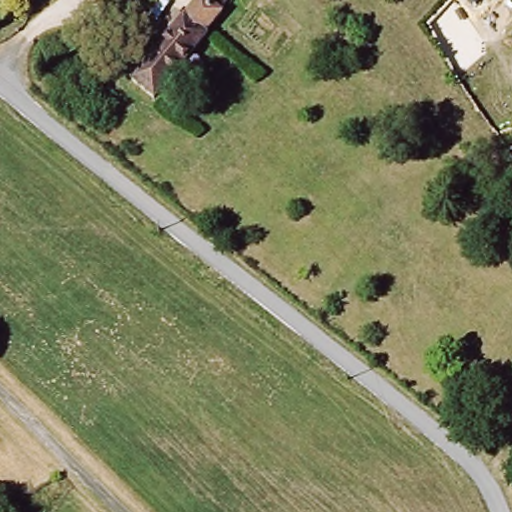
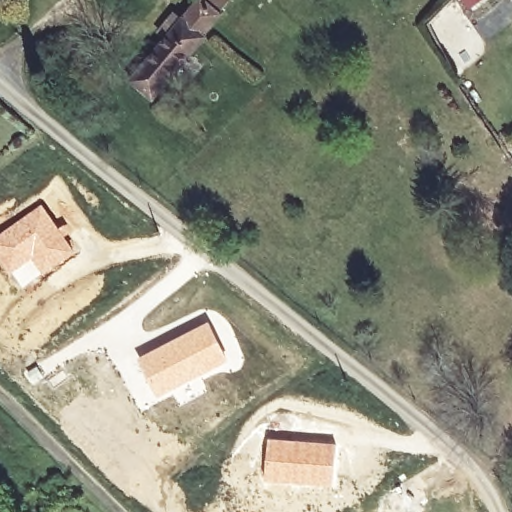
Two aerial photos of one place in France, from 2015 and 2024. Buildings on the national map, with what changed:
unchanged [(208,31),(211,35),(157,98),(133,78),(169,35),(162,29),(181,7),(188,13),(199,0),(217,0),(228,9),(208,31)]
new [(76,252),(20,289),(0,260),(0,232),(41,204),(76,252)]
new [(208,322),(228,361),(158,399),(137,358),(208,322)]
new [(268,438),(335,444),(331,488),(264,481),(268,438)]

